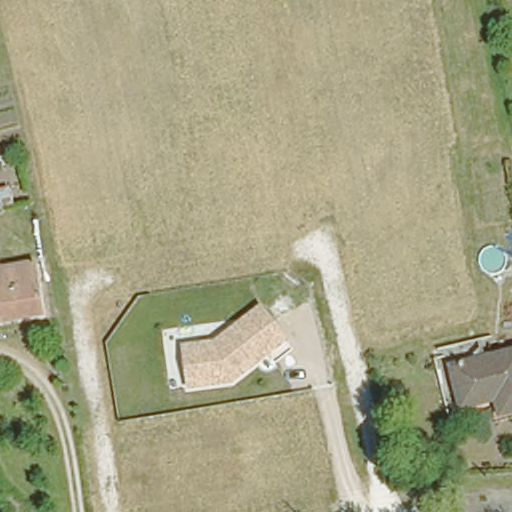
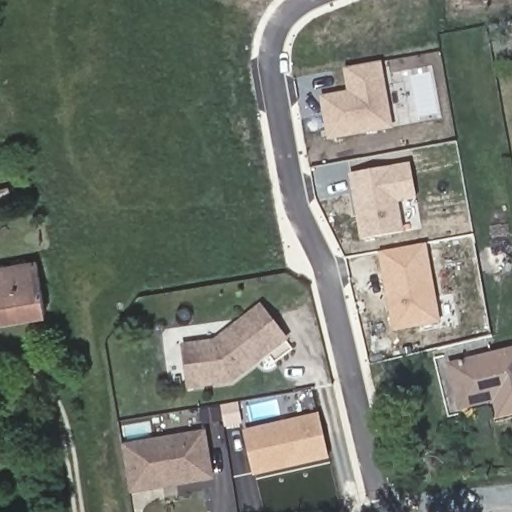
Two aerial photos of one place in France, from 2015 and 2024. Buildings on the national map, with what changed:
new [(346,91),(342,70),(382,62),(394,129),(327,140),(319,96),(346,91)]
new [(405,232),(360,240),(348,174),(410,164),(416,200),(400,204),(405,232)]
new [(391,332),(377,250),(428,243),(441,322),(391,332)]
unchanged [(37,257),(47,307),(0,314),(0,263),(37,257)]
unchanged [(233,382),(186,387),(180,344),(216,339),(262,304),(290,342),(233,382)]
unchanged [(497,411),(495,394),(461,401),(454,358),(501,348),(512,346),(512,408),(511,409),(497,411)]
new [(317,413),(330,459),(252,477),(241,431),(317,413)]
new [(130,494),(120,444),(205,429),(214,480),(130,494)]

